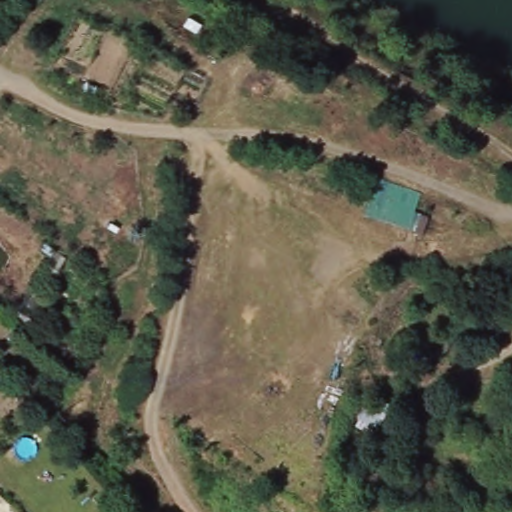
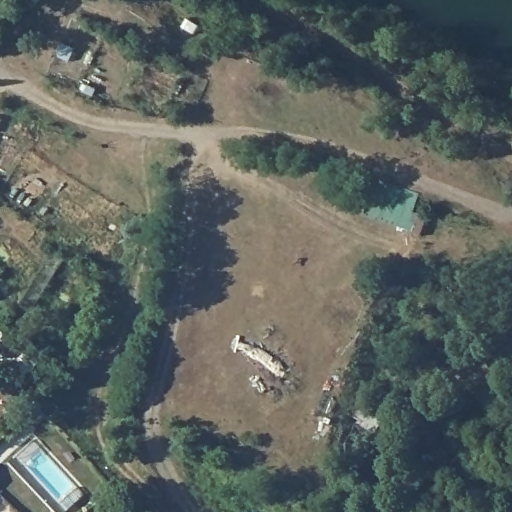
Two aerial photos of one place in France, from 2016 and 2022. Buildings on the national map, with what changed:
unchanged [(353,425),(355,419),(350,416),(357,392),(372,401),(380,393),(393,401),(380,439),(353,425)]

